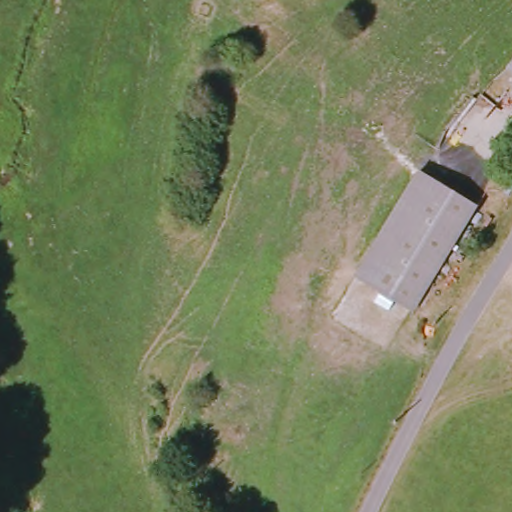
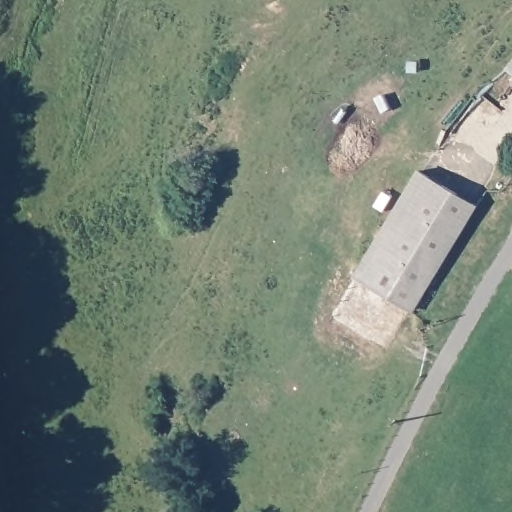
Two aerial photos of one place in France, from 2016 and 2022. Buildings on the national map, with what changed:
unchanged [(512,55),(512,76),(502,68),(512,55)]
unchanged [(413,310),(356,275),(419,171),(477,205),(413,310)]

